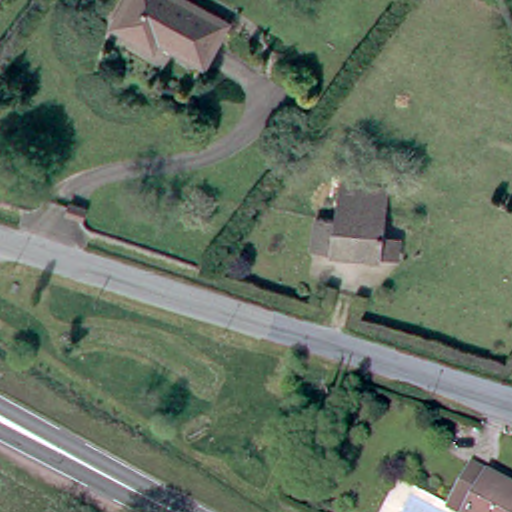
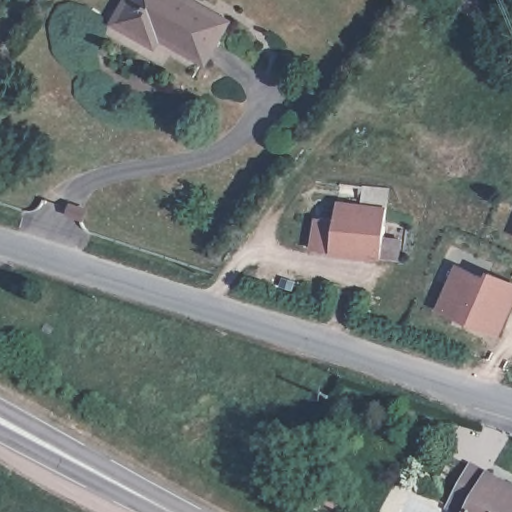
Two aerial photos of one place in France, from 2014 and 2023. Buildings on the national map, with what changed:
unchanged [(156,32),(150,41),(112,18),(123,0),(190,0),(223,19),(201,57),(156,32)]
unchanged [(395,261),(375,257),(307,250),(312,216),(327,219),(335,177),(385,183),(377,237),(397,240),(395,261)]
new [(485,276),(487,270),(512,282),(512,307),(500,336),(436,309),(455,262),(485,276)]
unchanged [(445,507),(467,467),(512,492),(512,512),(453,512),(445,507)]

